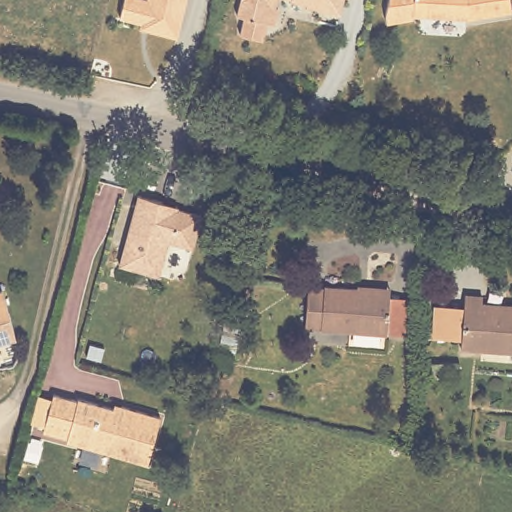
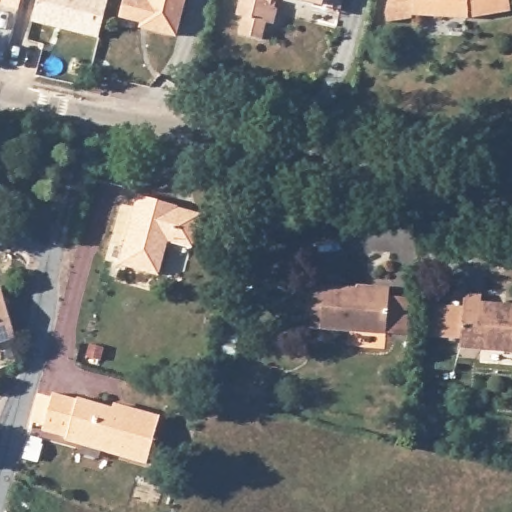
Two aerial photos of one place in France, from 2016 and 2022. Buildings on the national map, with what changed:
new [(19,11),(1,7),(3,0),(22,0),(19,11)]
new [(37,0),(108,0),(98,37),(31,22),(37,0)]
unchanged [(148,0),(187,0),(178,34),(172,37),(153,33),(149,27),(120,19),(125,0),(145,0),(147,0),(148,0)]
unchanged [(285,4),(286,5),(283,21),(275,19),(271,36),(248,31),(253,14),(245,12),(248,0),(286,0),(285,4)]
unchanged [(348,9),(315,1),(315,0),(350,0),(348,9)]
unchanged [(508,7),(464,18),(412,15),(411,18),(386,24),(384,15),(387,0),(507,0),(508,7)]
unchanged [(197,245),(173,238),(163,273),(124,262),(143,193),(167,199),(183,202),(182,206),(206,212),(197,245)]
unchanged [(291,319),(294,280),(310,281),(310,278),(343,280),(343,277),(376,280),(375,289),(400,291),(400,297),(397,328),(372,326),(291,319)]
unchanged [(8,284),(10,293),(21,334),(0,340),(0,287),(8,284)]
unchanged [(512,303),(512,349),(461,345),(465,291),(482,292),(481,300),(512,303)]
unchanged [(151,457),(70,433),(81,392),(114,401),(116,397),(164,410),(151,457)]

